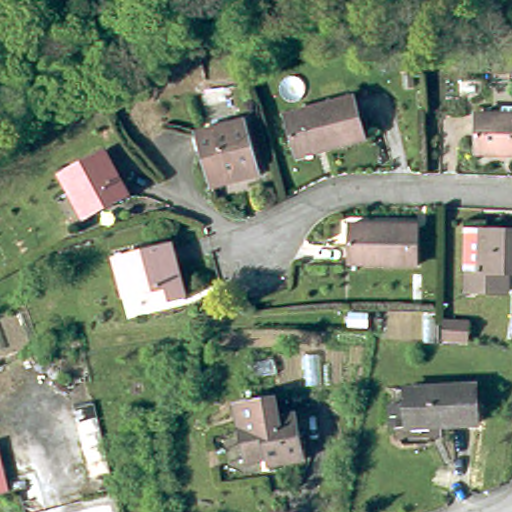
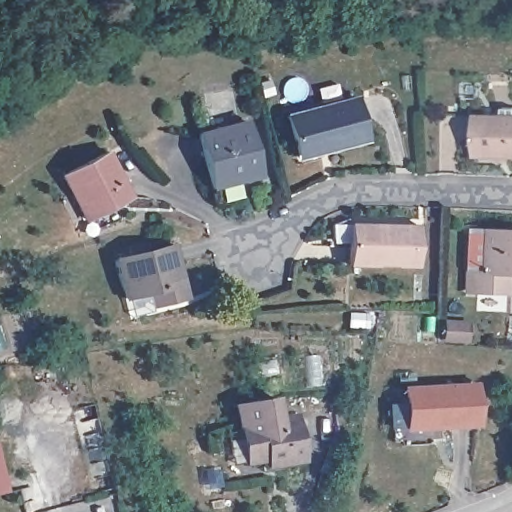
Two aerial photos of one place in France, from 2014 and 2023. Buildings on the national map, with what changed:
unchanged [(298,154),(288,116),(355,98),(366,140),(327,150),(299,158),(298,154)]
unchanged [(512,155),(477,155),(477,115),(505,116),(505,108),(512,108),(512,155)]
unchanged [(218,183),(203,129),(252,117),(266,170),(218,183)]
unchanged [(130,197),(87,220),(62,175),(107,151),(130,197)]
unchanged [(413,260),(344,259),(345,220),(414,221),(413,260)]
unchanged [(502,282),(461,280),(462,259),(460,259),(462,223),(480,224),(480,222),(512,223),(512,263),(503,262),(502,282)]
unchanged [(115,293),(105,255),(164,240),(177,291),(152,298),(142,300),(138,287),(115,293)]
unchanged [(443,338),(445,322),(468,323),(467,340),(443,338)]
unchanged [(434,426),(434,423),(402,424),(400,389),(469,385),(471,424),(434,426)]
unchanged [(268,408),(285,405),(294,449),(267,454),(267,459),(254,462),(252,450),(236,453),(229,415),(230,415),(227,394),(264,387),(268,408)]
unchanged [(0,495),(0,460),(8,492),(2,494),(0,495)]

